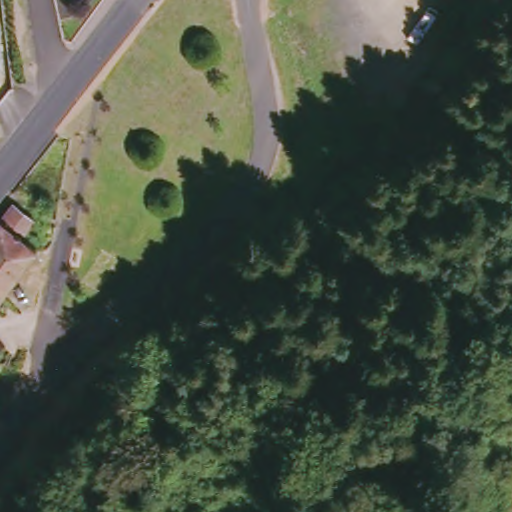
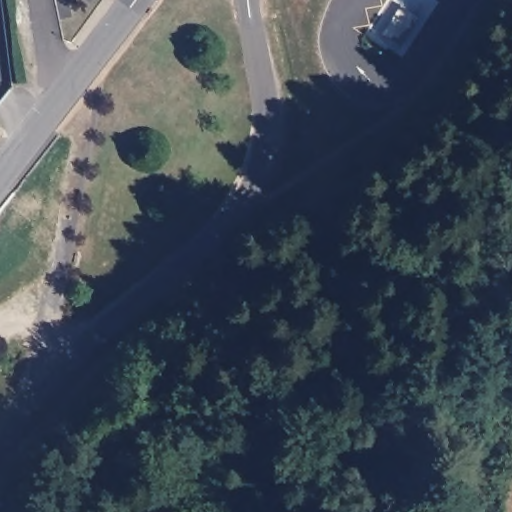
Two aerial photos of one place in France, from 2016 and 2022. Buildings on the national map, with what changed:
unchanged [(0,222),(3,224),(17,207),(35,221),(21,240),(33,250),(0,292),(0,223),(0,222)]

